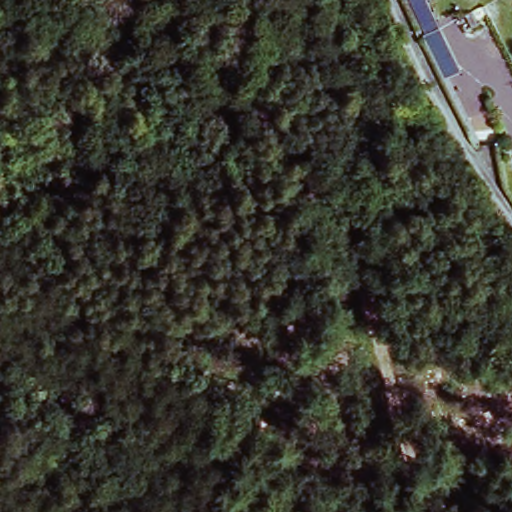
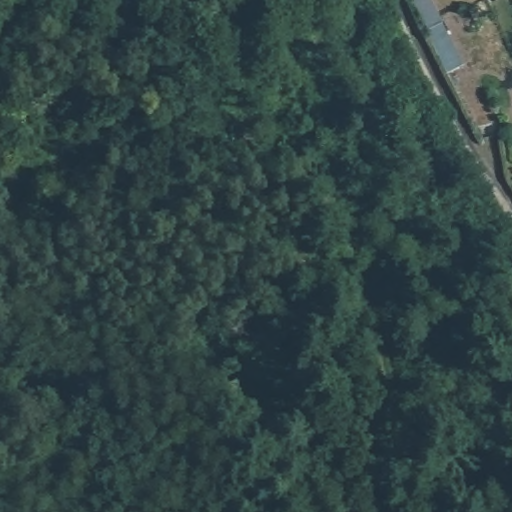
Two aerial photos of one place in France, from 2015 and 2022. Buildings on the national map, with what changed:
unchanged [(447,74),(411,0),(429,0),(462,66),(447,74)]

